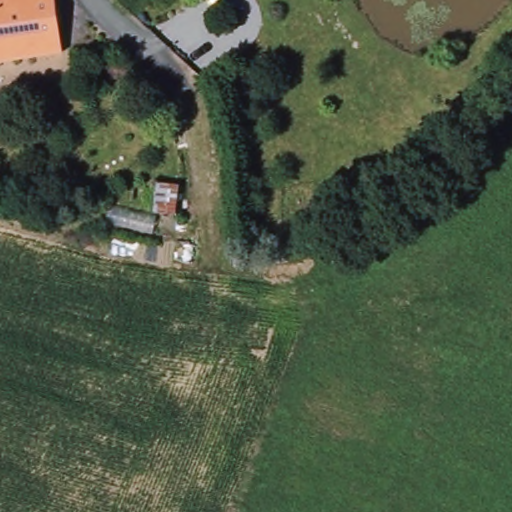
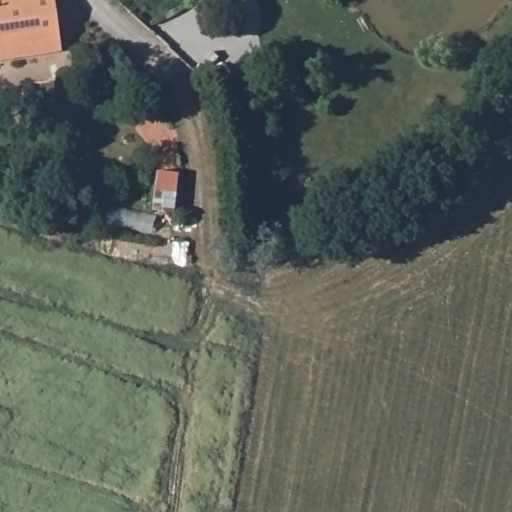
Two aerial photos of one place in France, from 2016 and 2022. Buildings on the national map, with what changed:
unchanged [(63,54),(16,61),(13,62),(0,64),(0,0),(55,0),(63,54)]

